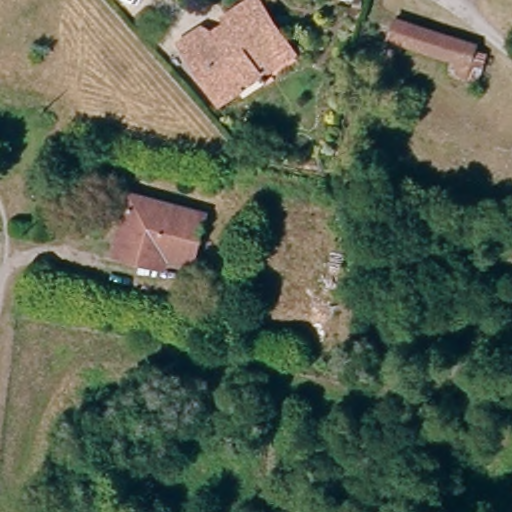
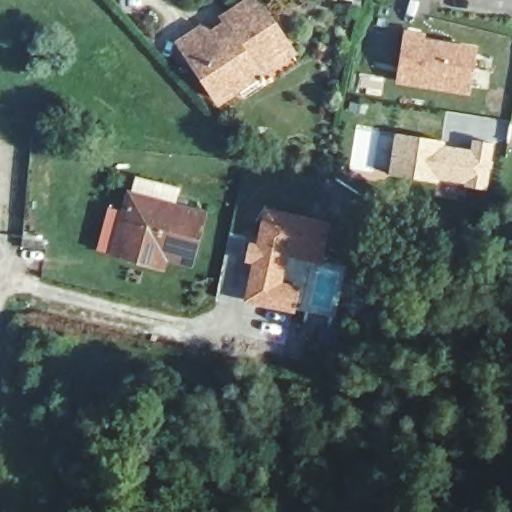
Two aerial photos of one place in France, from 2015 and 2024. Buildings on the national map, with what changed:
unchanged [(242,91),(237,86),(219,100),(178,45),(199,30),(206,31),(209,29),(222,17),(222,14),(241,0),(256,0),(277,28),(294,52),(242,91)]
demolished [(396,21),(477,46),(471,67),(390,42),(396,21)]
new [(425,32),(423,38),(470,47),(465,88),(399,79),(407,31),(425,32)]
new [(399,134),(445,141),(443,151),(452,153),(452,150),(475,153),(476,141),(493,143),(486,189),(468,187),(470,182),(438,177),(437,183),(392,175),(399,134)]
unchanged [(144,263),(111,254),(126,196),(200,216),(188,262),(163,255),(160,268),(144,263)]
new [(249,265),(242,263),(248,240),(255,241),(264,206),(330,222),(321,266),(289,259),(285,278),(303,283),(295,314),(241,302),(249,265)]

